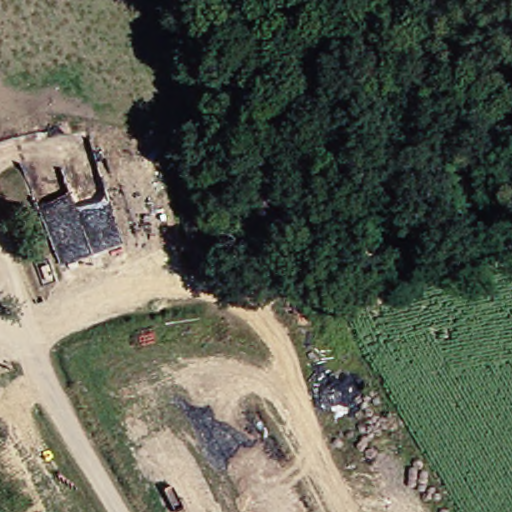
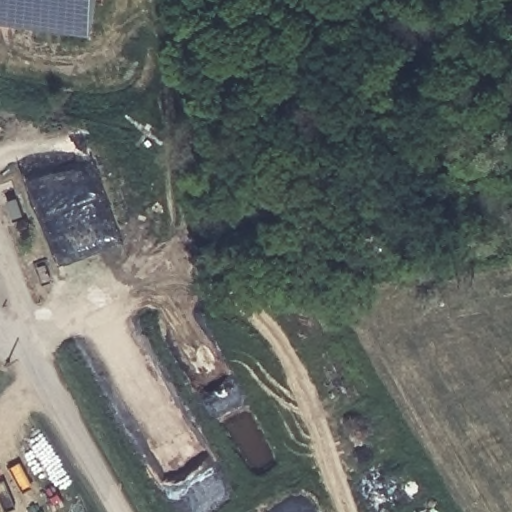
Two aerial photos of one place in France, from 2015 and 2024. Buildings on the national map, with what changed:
new [(0,23),(0,0),(94,0),(91,35),(0,23)]

